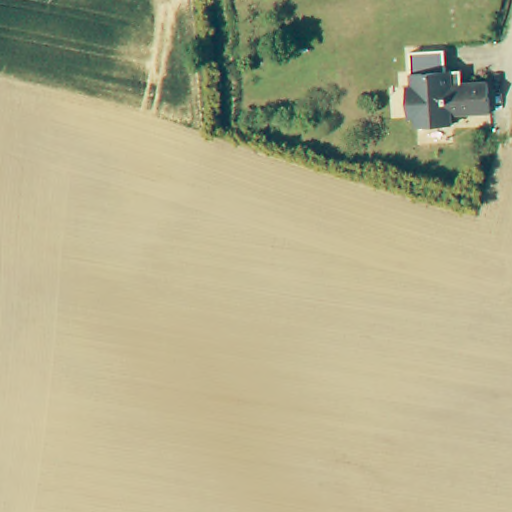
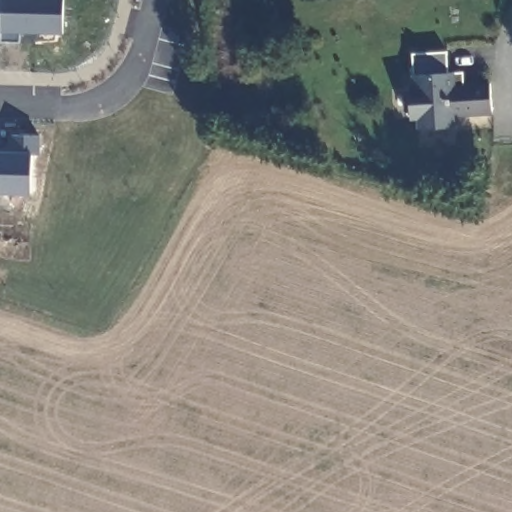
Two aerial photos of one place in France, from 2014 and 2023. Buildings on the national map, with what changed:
new [(0,41),(0,0),(2,0),(0,41)]
new [(2,0),(64,0),(63,33),(20,32),(20,42),(0,41),(2,0)]
unchanged [(452,114),(453,124),(418,126),(417,115),(410,115),(408,86),(408,85),(410,85),(413,85),(413,84),(412,50),(447,49),(448,70),(461,70),(463,70),(463,83),(491,82),(490,112),(452,114)]
new [(0,151),(11,151),(11,134),(40,135),(39,153),(32,153),(31,191),(0,191),(0,149),(0,151)]

